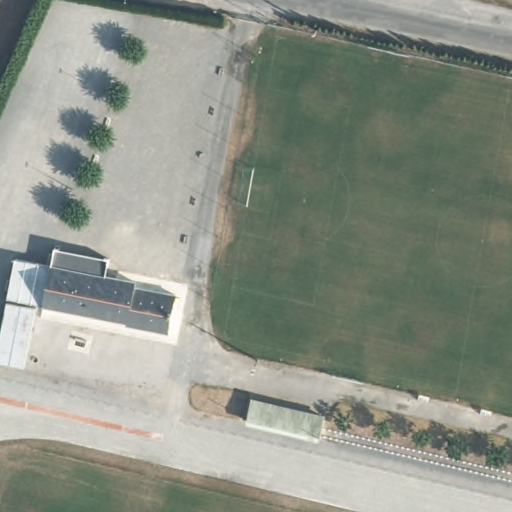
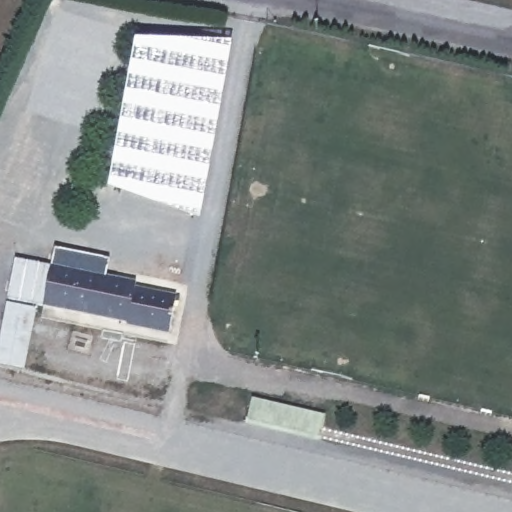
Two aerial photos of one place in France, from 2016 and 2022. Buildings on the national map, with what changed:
new [(201,217),(154,206),(108,188),(135,40),(231,42),(201,217)]
unchanged [(50,265),(55,244),(111,256),(107,277),(50,265)]
unchanged [(50,265),(44,306),(40,306),(28,370),(0,364),(0,321),(11,257),(50,265)]
unchanged [(135,282),(135,287),(174,295),(166,332),(124,324),(124,322),(44,306),(50,265),(107,277),(135,282)]
unchanged [(328,412),(323,431),(250,416),(256,396),(328,412)]

